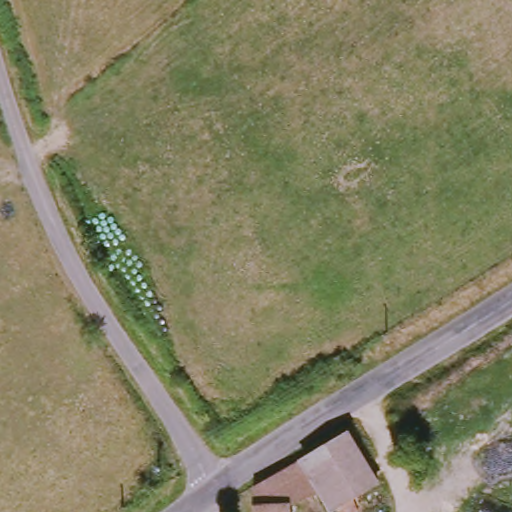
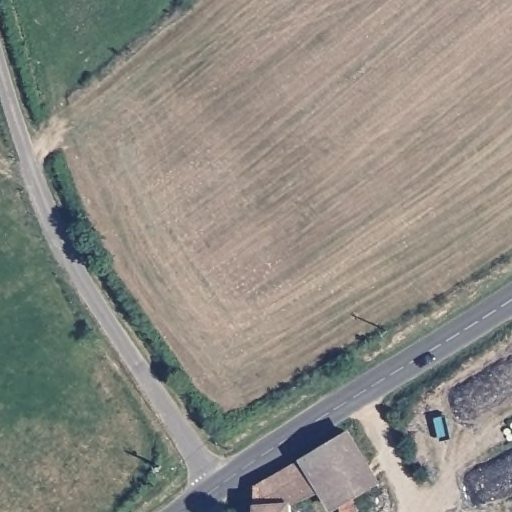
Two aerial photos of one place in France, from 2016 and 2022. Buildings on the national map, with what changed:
unchanged [(353,429),(359,438),(371,432),(383,451),(371,459),(380,477),(352,494),(358,504),(346,512),(343,512),(336,502),(329,507),(314,483),(301,461),(353,429)]
unchanged [(257,487),(301,461),(314,483),(288,503),(257,504),(257,487)]
unchanged [(288,503),(288,512),(257,512),(257,504),(288,503)]

